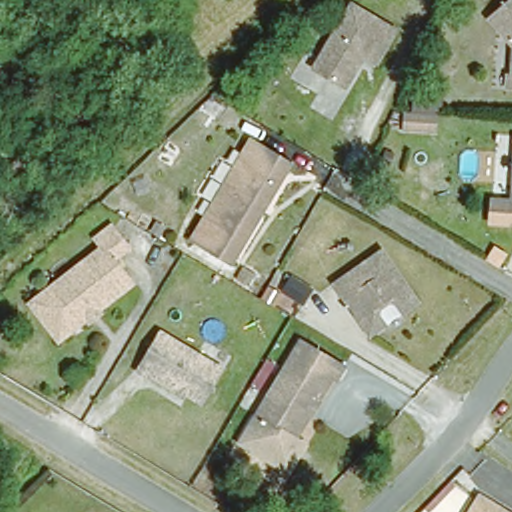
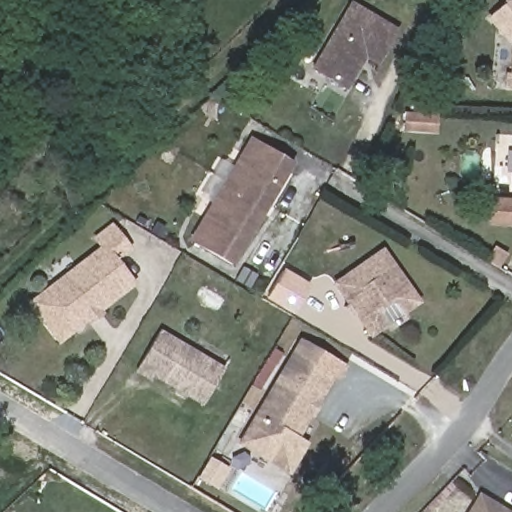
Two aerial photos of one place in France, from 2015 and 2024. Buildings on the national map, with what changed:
unchanged [(509,71),(511,43),(486,16),(504,0),(512,0),(512,71),(509,71)]
unchanged [(308,70),(346,7),(392,31),(372,65),(359,59),(343,88),(308,70)]
unchanged [(408,113),(408,108),(411,108),(412,86),(435,86),(433,115),(432,130),(407,128),(408,113)]
unchanged [(188,244),(247,143),(286,166),(229,267),(188,244)]
unchanged [(483,222),(484,193),(507,194),(506,206),(512,206),(512,225),(483,222)]
unchanged [(511,204),(512,197),(512,204),(511,204)]
unchanged [(27,303),(33,299),(101,248),(94,238),(111,226),(125,246),(112,257),(130,281),(96,308),(91,306),(82,314),(83,318),(66,330),(55,338),(27,303)]
unchanged [(389,330),(385,327),(369,338),(332,286),(380,252),(417,304),(400,315),(403,321),(389,330)]
unchanged [(136,366),(156,333),(219,370),(198,404),(182,396),(184,391),(177,387),(175,390),(136,366)]
unchanged [(340,382),(336,380),(313,423),(308,422),(300,438),(310,444),(292,475),(240,448),(301,339),(348,365),(340,382)]
unchanged [(466,512),(476,497),(502,512),(466,512)]

